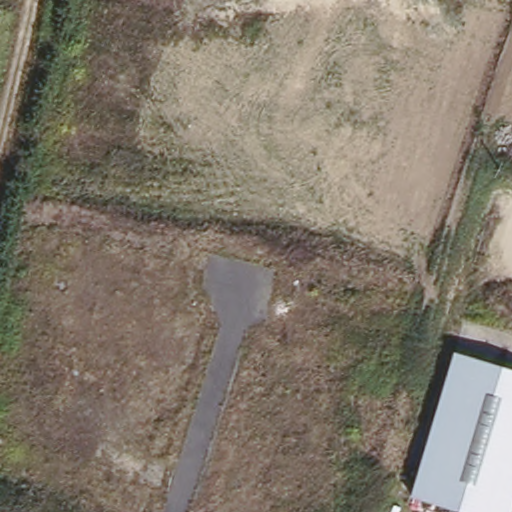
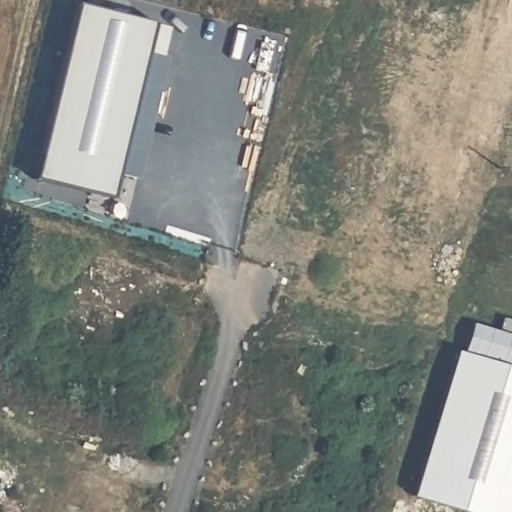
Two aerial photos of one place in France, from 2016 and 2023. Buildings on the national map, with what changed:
new [(147,27),(144,57),(162,62),(132,184),(111,180),(105,204),(29,184),(71,11),(147,27)]
unchanged [(512,512),(453,512),(410,500),(455,356),(512,370),(512,512)]

